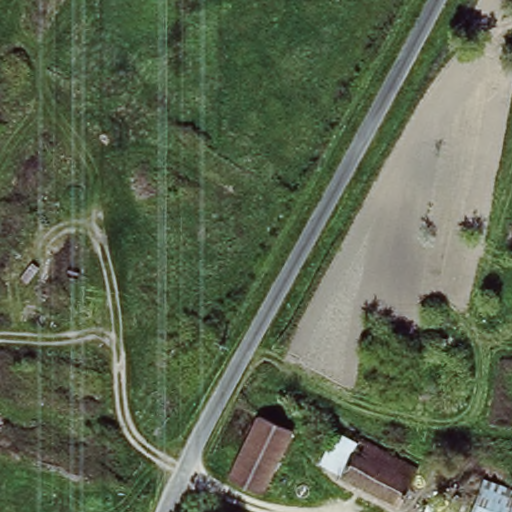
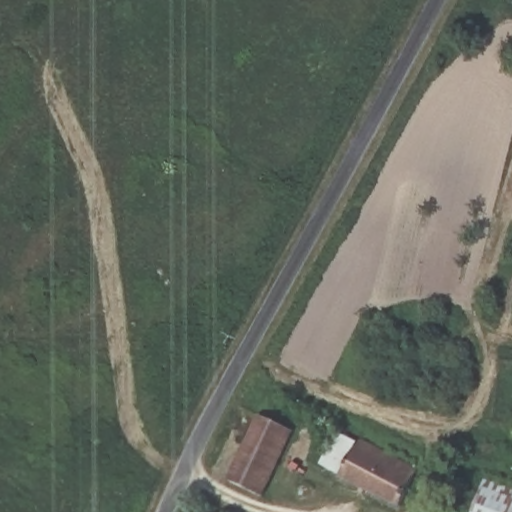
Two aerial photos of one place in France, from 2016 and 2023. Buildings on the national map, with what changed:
unchanged [(229,481),(259,417),(292,434),(262,496),(229,481)]
unchanged [(323,478),(331,462),(347,469),(359,445),(414,473),(395,512),(392,512),(323,478)]
unchanged [(512,499),(512,512),(469,512),(478,489),(512,499)]

